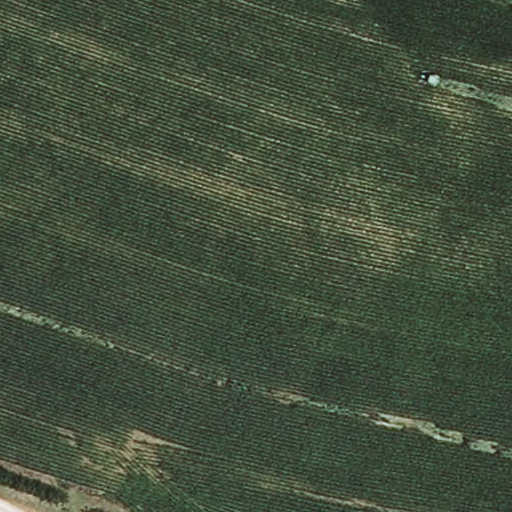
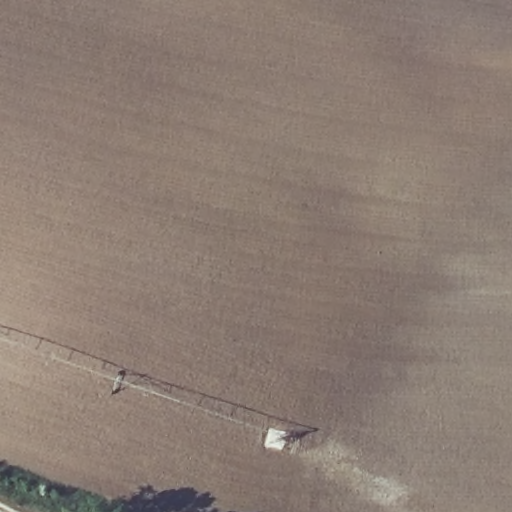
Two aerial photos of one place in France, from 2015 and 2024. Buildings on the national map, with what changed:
[]

